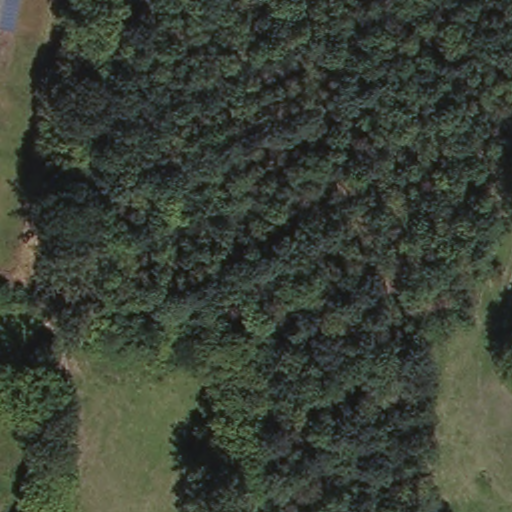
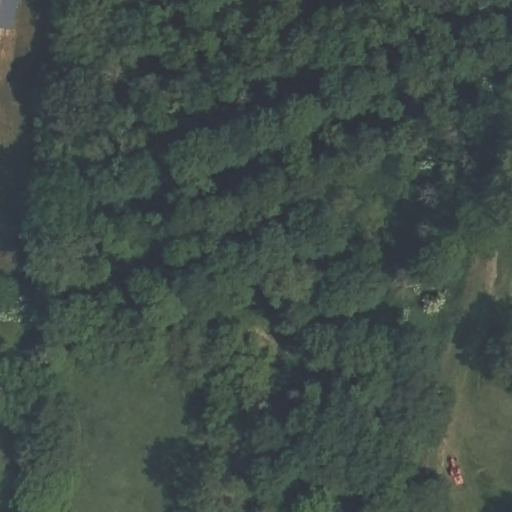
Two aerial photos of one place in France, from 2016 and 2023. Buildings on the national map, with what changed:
unchanged [(15,31),(0,28),(0,0),(20,0),(15,31)]

